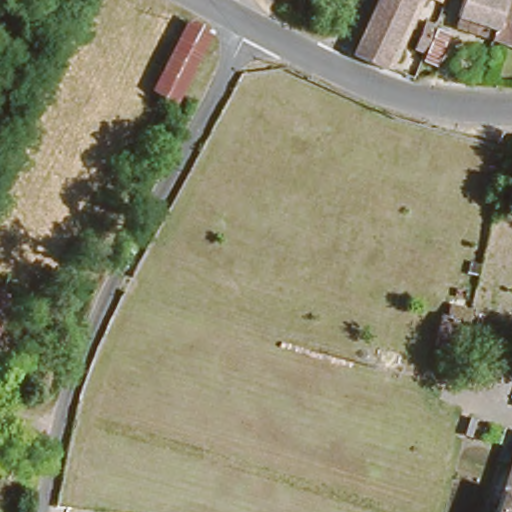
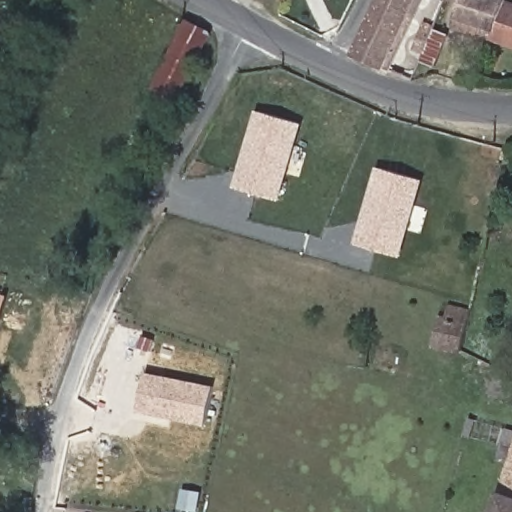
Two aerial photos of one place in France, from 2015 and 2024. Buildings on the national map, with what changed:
unchanged [(349,50),(371,0),(410,0),(381,63),(349,50)]
unchanged [(496,23),(459,11),(463,0),(505,0),(504,1),(496,23)]
unchanged [(496,23),(504,1),(505,0),(512,0),(512,39),(493,32),(496,23)]
unchanged [(205,31),(172,96),(150,86),(183,20),(205,31)]
unchanged [(427,21),(437,25),(425,56),(415,53),(427,21)]
new [(256,113),(302,126),(280,202),(234,188),(256,113)]
new [(377,169),(423,182),(401,258),(355,245),(377,169)]
unchanged [(3,295),(0,306),(0,293),(3,295)]
unchanged [(445,321),(448,309),(468,314),(459,354),(430,346),(437,319),(445,321)]
new [(214,387),(206,427),(138,413),(146,373),(214,387)]
unchanged [(512,512),(489,512),(512,443),(512,512)]

